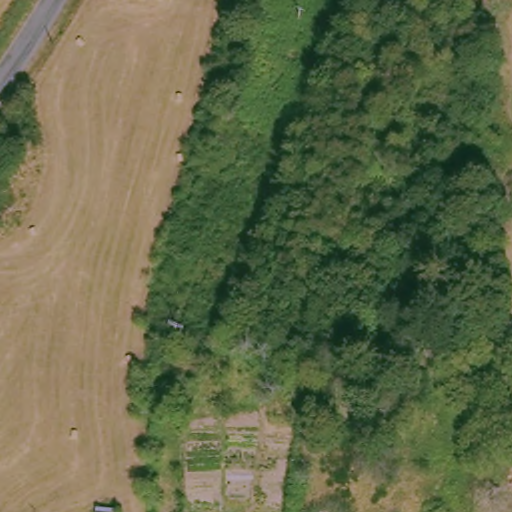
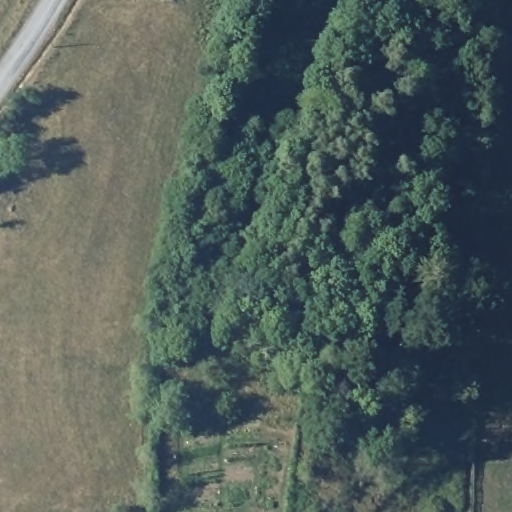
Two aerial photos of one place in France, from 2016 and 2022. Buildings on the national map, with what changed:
[]

